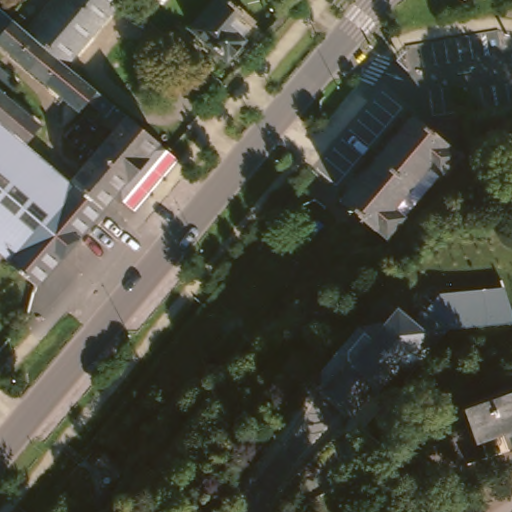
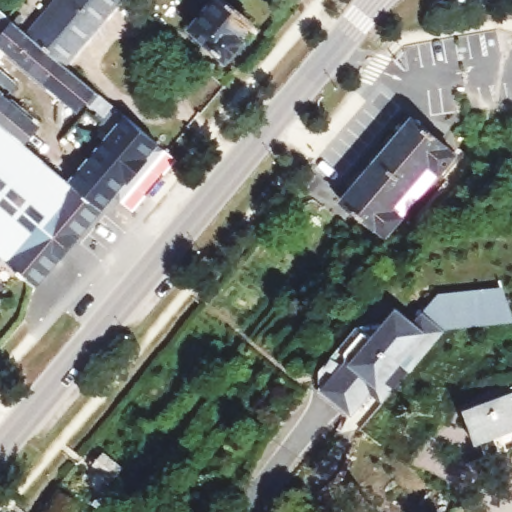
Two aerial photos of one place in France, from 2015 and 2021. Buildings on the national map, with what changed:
unchanged [(57,0),(120,0),(66,64),(29,33),(57,0)]
unchanged [(239,34),(244,38),(228,58),(192,26),(215,0),(229,0),(252,19),(239,34)]
unchanged [(14,20),(0,37),(0,8),(9,16),(14,20)]
unchanged [(29,33),(66,64),(74,71),(94,89),(93,92),(78,109),(0,42),(0,37),(14,20),(29,33)]
unchanged [(35,125),(22,140),(29,146),(71,180),(101,205),(103,207),(35,285),(4,259),(0,255),(0,94),(3,96),(35,125)]
unchanged [(408,113),(453,154),(381,239),(334,199),(408,113)]
unchanged [(136,185),(128,178),(93,149),(85,143),(91,135),(98,140),(95,143),(100,146),(110,135),(106,132),(109,129),(113,124),(117,128),(126,116),(158,144),(144,159),(153,165),(136,185)]
unchanged [(79,164),(93,149),(128,178),(103,207),(101,205),(71,180),(83,167),(79,164)]
unchanged [(417,288),(374,249),(381,239),(426,278),(417,288)]
unchanged [(0,255),(4,259),(0,264),(0,255)]
unchanged [(339,362),(332,353),(356,327),(364,334),(389,303),(404,320),(430,296),(499,290),(508,329),(439,334),(347,423),(313,387),(339,362)]
unchanged [(512,396),(512,431),(502,435),(509,449),(488,458),(482,443),(477,446),(463,416),(512,396)]
unchanged [(103,481),(111,488),(100,501),(92,494),(103,481)]

